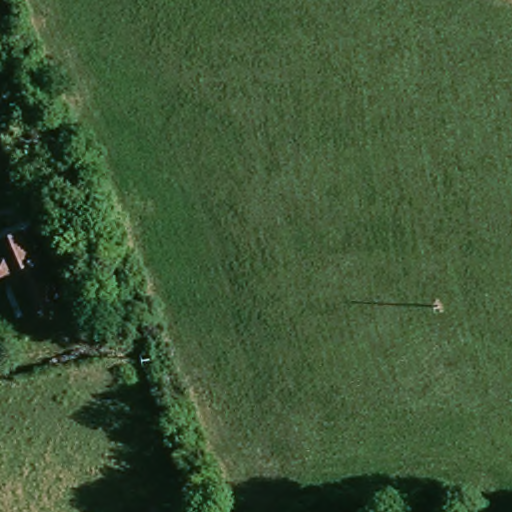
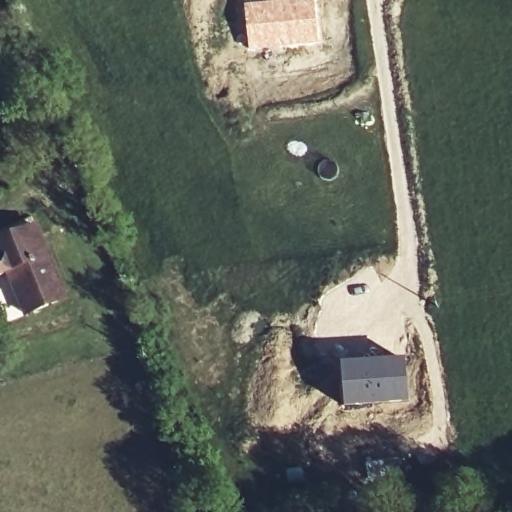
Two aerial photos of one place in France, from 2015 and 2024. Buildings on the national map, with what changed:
new [(314,0),(318,42),(248,50),(243,4),(281,0),(314,0)]
unchanged [(29,318),(13,277),(0,283),(0,235),(30,222),(63,304),(29,318)]
new [(406,357),(409,401),(344,407),(339,362),(406,357)]

